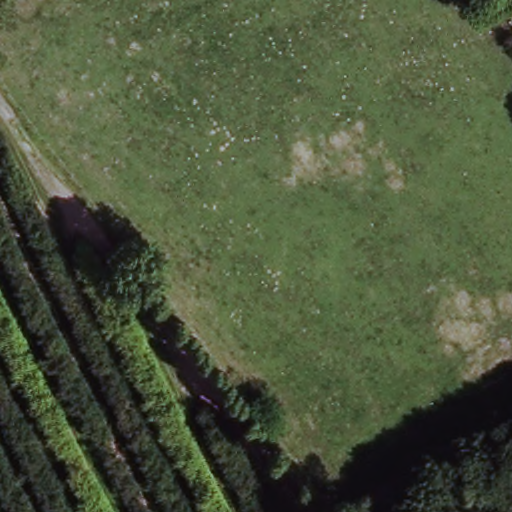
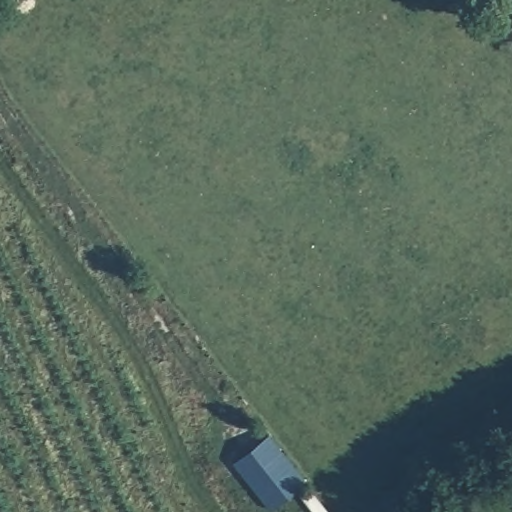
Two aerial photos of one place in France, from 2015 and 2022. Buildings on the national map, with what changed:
new [(270,433),(307,482),(271,511),(233,462),(270,433)]

